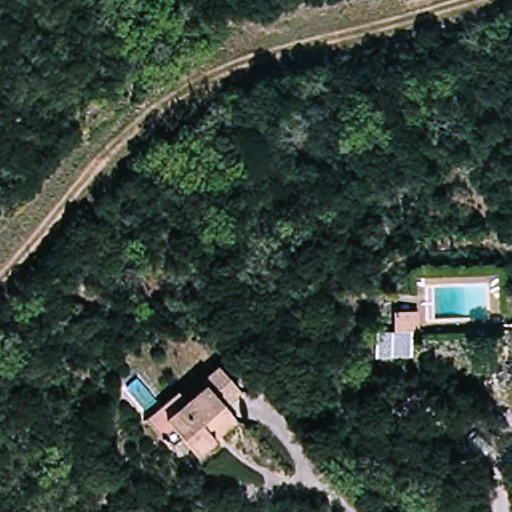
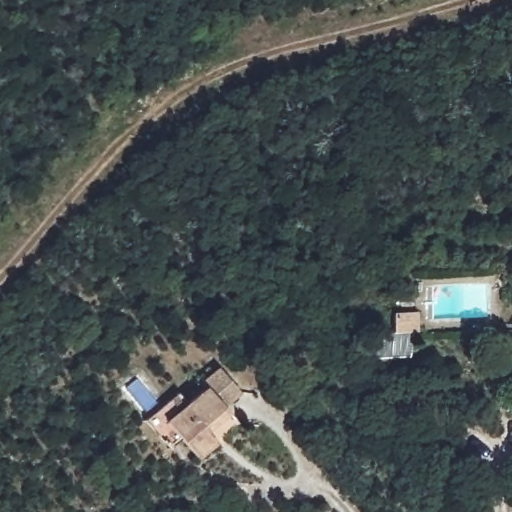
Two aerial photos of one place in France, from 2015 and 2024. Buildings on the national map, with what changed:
unchanged [(391,333),(390,316),(409,314),(410,332),(391,333)]
unchanged [(204,390),(199,384),(216,371),(236,395),(219,410),(226,418),(205,436),(212,445),(193,460),(180,443),(168,452),(155,435),(144,422),(174,396),(183,407),(204,390)]

